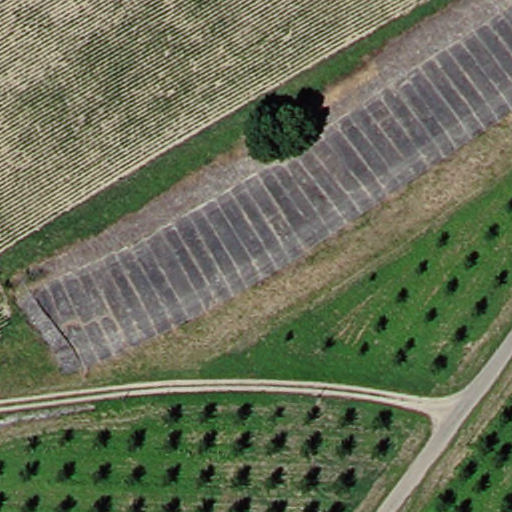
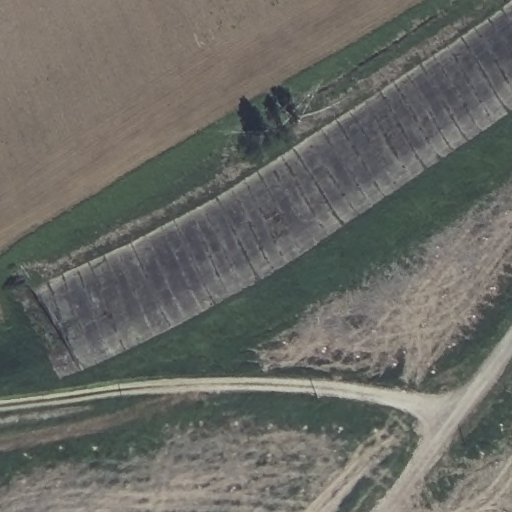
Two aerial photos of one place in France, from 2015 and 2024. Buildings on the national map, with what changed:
[]

